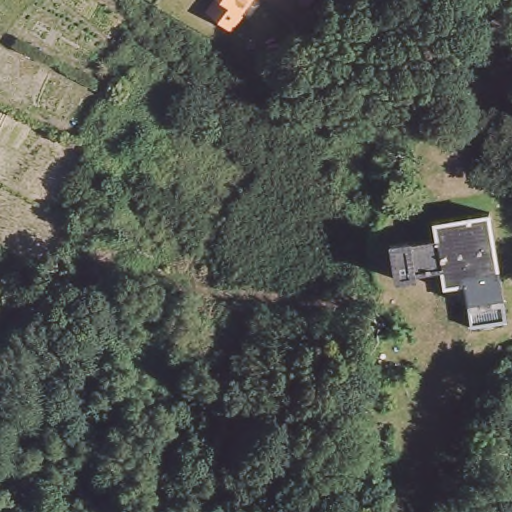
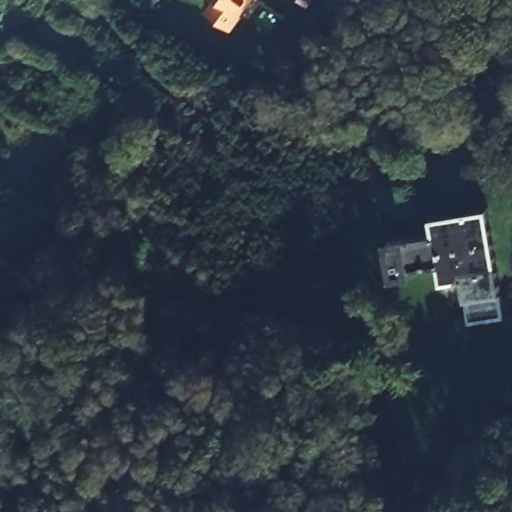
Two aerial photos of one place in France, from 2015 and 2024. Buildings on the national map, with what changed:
unchanged [(251,0),(244,10),(247,11),(235,28),(212,11),(221,0),(251,0)]
unchanged [(480,208),(488,256),(460,260),(457,246),(430,250),(427,235),(425,216),(442,214),(480,208)]
unchanged [(388,273),(383,242),(427,235),(430,250),(432,264),(388,273)]
unchanged [(462,319),(459,300),(455,278),(434,280),(432,264),(430,250),(457,246),(460,260),(488,256),(498,314),(462,319)]

